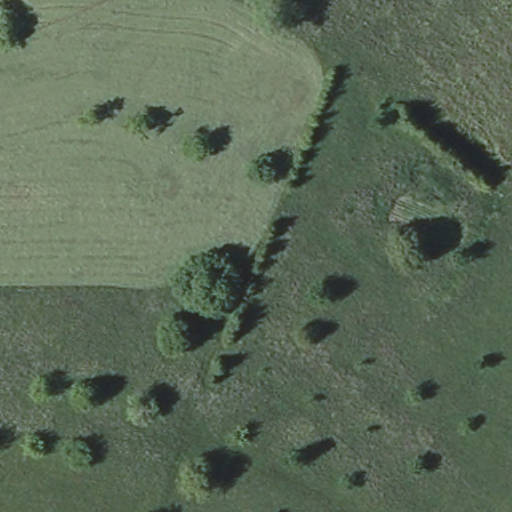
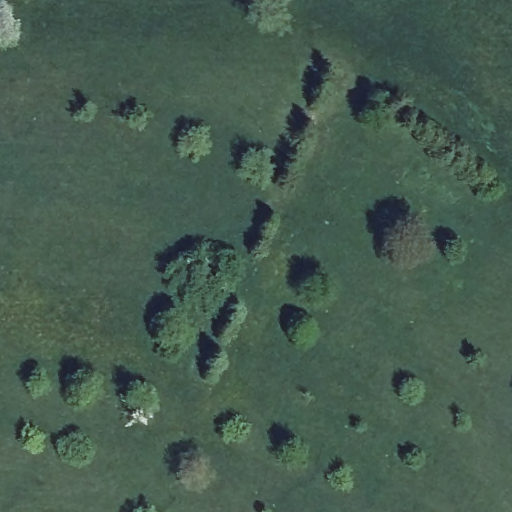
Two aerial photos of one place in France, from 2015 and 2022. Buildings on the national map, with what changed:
[]

